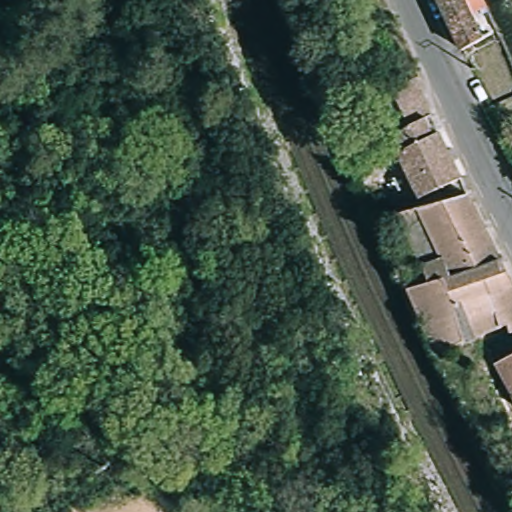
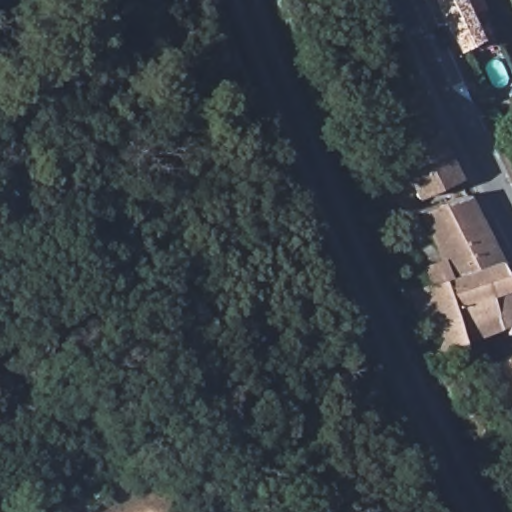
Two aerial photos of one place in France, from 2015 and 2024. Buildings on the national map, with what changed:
unchanged [(352,1),(352,0),(353,0),(352,1)]
unchanged [(487,40),(464,52),(440,0),(468,0),(487,40)]
unchanged [(391,155),(397,137),(403,130),(395,112),(402,110),(393,89),(416,79),(460,180),(420,198),(399,152),(392,156),(391,155)]
unchanged [(419,212),(468,197),(512,281),(512,332),(509,327),(447,345),(441,332),(426,336),(403,292),(436,282),(429,265),(441,257),(419,212)]
unchanged [(502,362),(500,359),(508,355),(509,358),(512,356),(512,391),(498,365),(502,362)]

